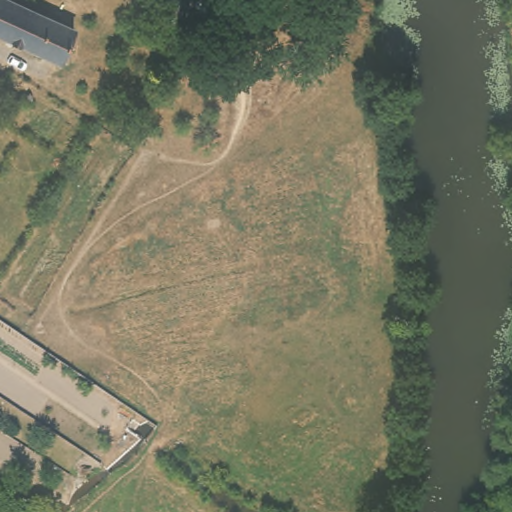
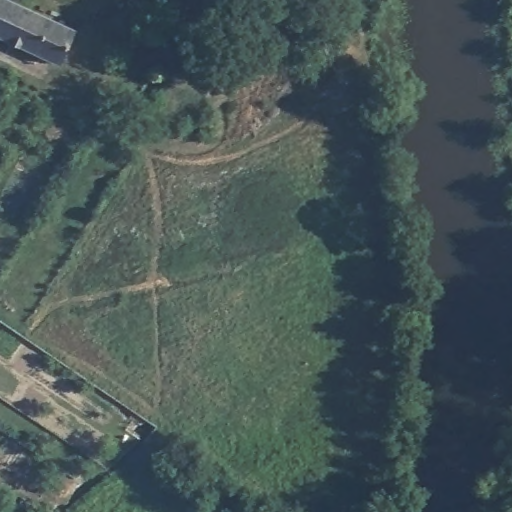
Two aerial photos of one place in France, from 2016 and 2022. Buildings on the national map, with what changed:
unchanged [(66,42),(75,46),(66,65),(0,35),(0,0),(9,0),(73,28),(66,42)]

